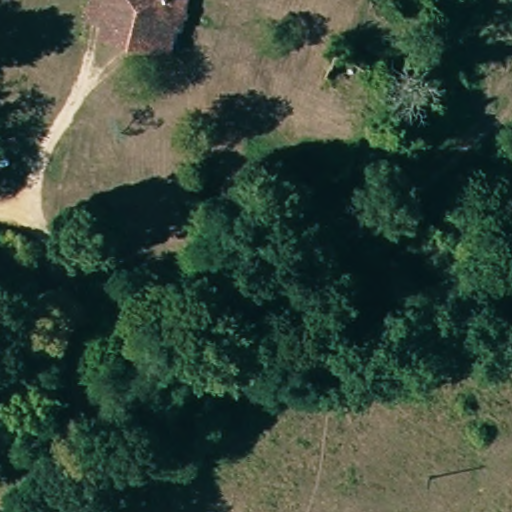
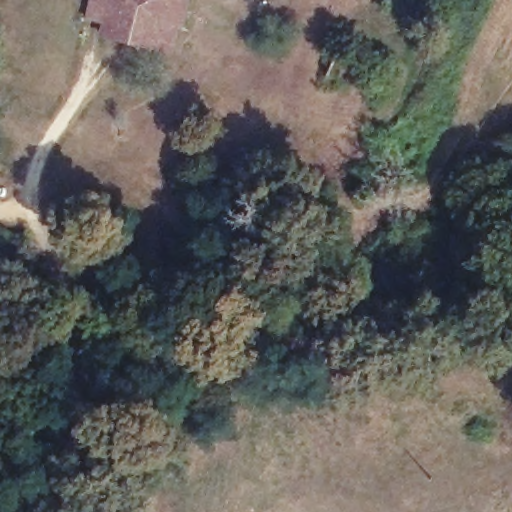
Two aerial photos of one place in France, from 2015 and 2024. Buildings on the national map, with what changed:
unchanged [(90,14),(94,0),(193,0),(187,25),(181,24),(176,49),(160,44),(105,30),(109,18),(90,14)]

